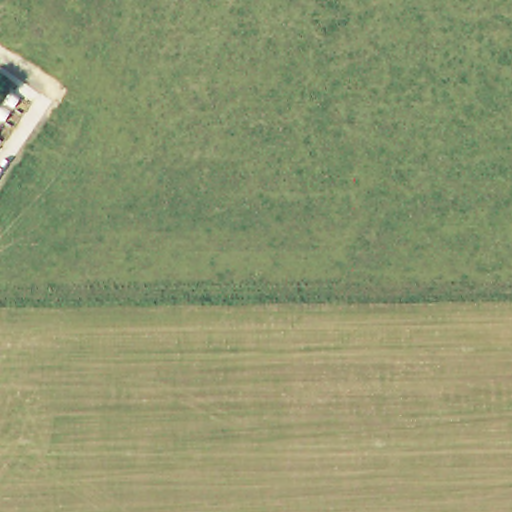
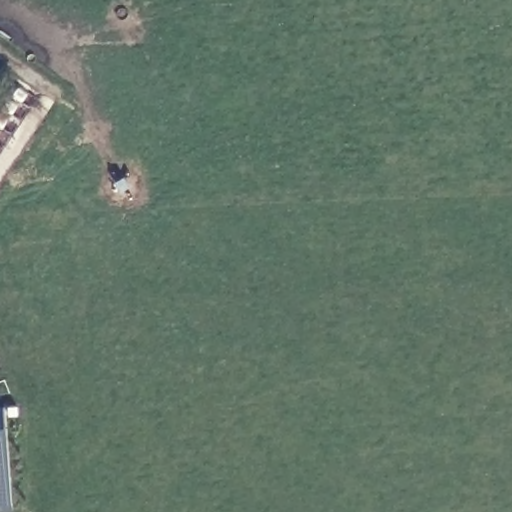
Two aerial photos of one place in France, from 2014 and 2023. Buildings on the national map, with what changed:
new [(6,408),(12,509),(0,510),(0,408),(6,408)]

